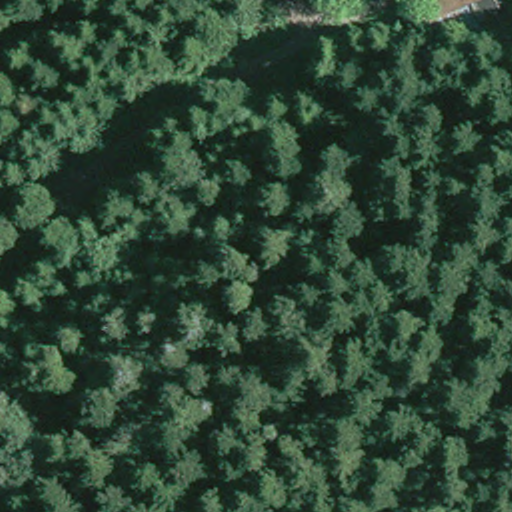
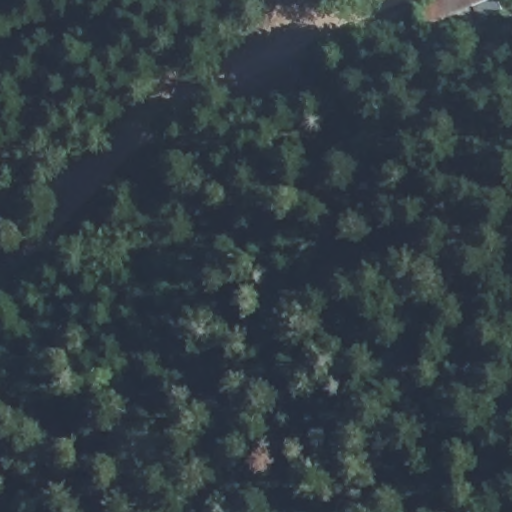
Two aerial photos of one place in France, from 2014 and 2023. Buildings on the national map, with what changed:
unchanged [(493,22),(434,19),(425,0),(482,0),(493,22)]

